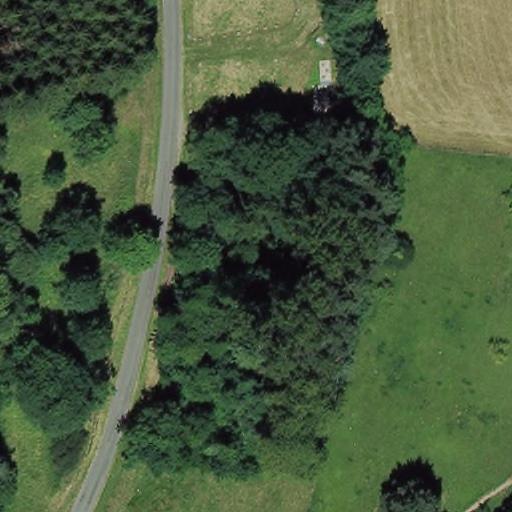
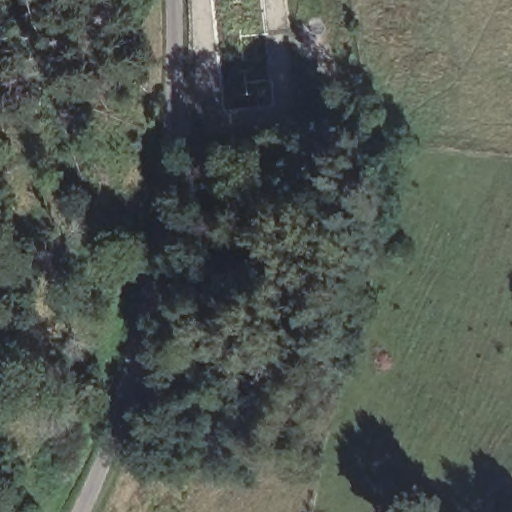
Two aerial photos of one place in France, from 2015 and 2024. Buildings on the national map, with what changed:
[]

